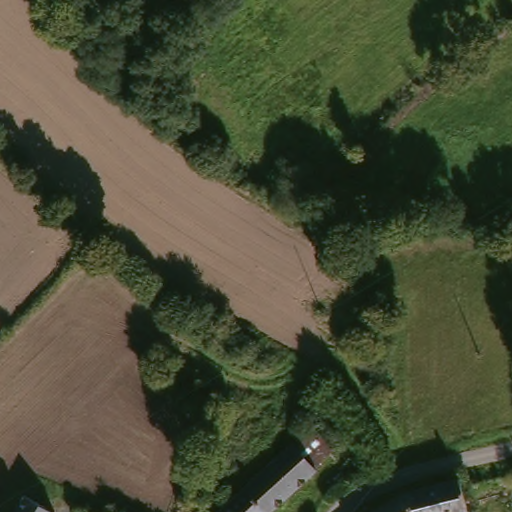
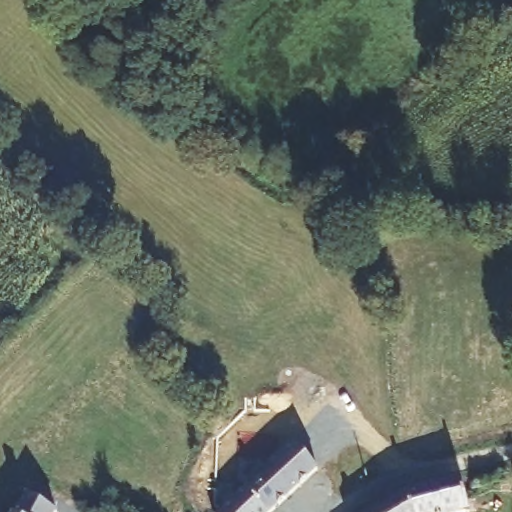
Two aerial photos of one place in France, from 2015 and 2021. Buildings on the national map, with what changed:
unchanged [(295,444),(315,425),(336,450),(332,454),(316,467),(319,470),(273,512),(221,512),(295,444)]
unchanged [(396,493),(410,487),(461,474),(471,507),(449,512),(366,512),(396,493)]
unchanged [(28,496),(54,512),(18,512),(28,496)]

